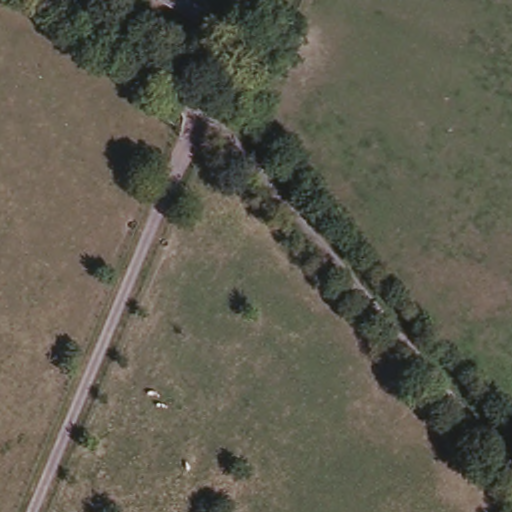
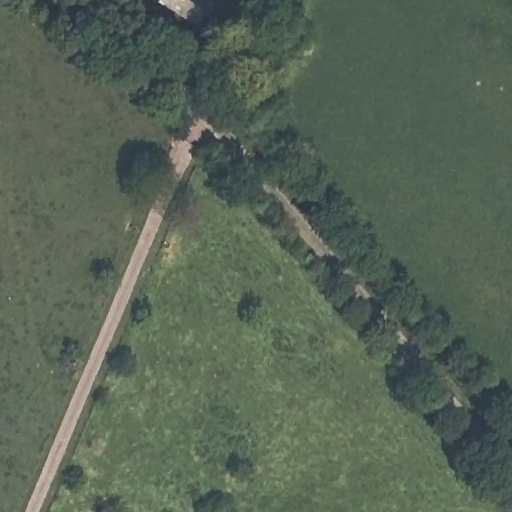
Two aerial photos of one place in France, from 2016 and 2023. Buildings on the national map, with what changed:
unchanged [(200,25),(149,2),(151,0),(191,0),(206,10),(200,25)]

